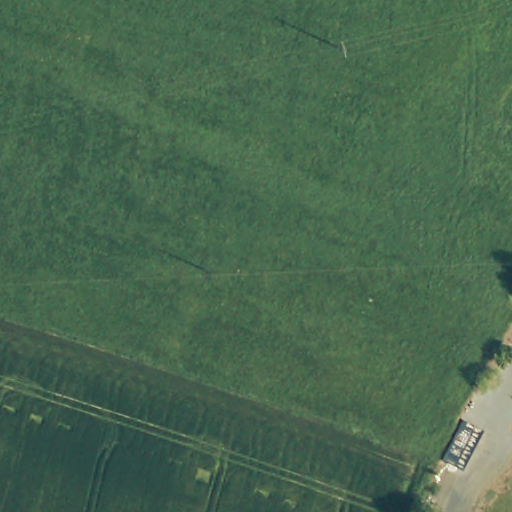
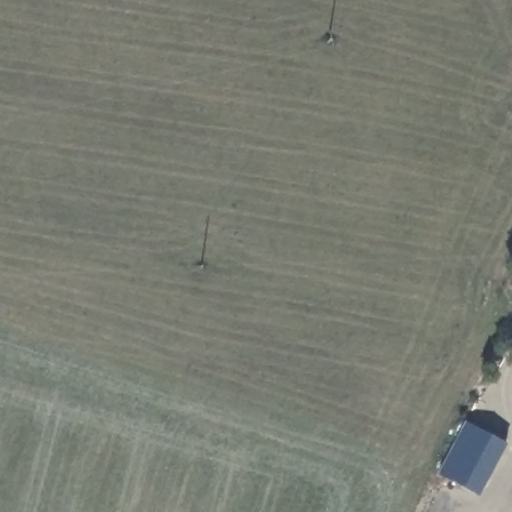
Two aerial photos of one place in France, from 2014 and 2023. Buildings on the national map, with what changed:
new [(478,494),(438,475),(466,421),(508,442),(478,494)]

